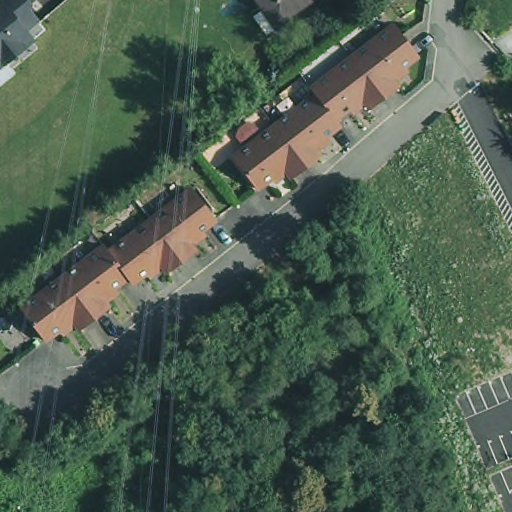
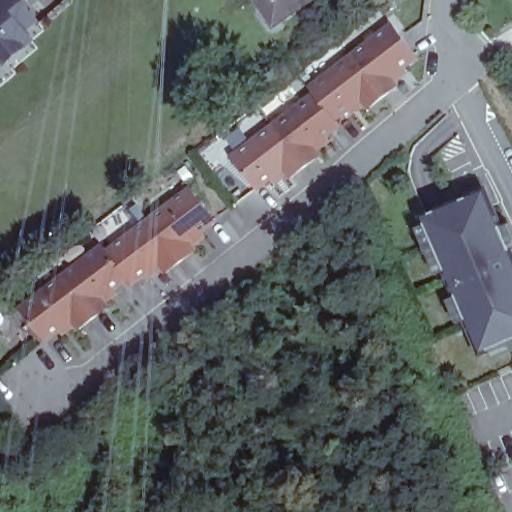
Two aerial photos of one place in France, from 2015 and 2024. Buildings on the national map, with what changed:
unchanged [(30,11),(40,23),(28,32),(38,43),(0,73),(0,0),(28,0),(35,7),(30,11)]
unchanged [(256,0),(304,0),(302,1),(278,18),(271,23),(260,6),(256,0)]
unchanged [(317,81),(398,17),(423,49),(396,70),(403,79),(375,101),(367,91),(341,112),(321,86),(317,81)]
unchanged [(341,112),(345,118),(319,139),(326,148),(297,170),(290,160),(263,181),(239,149),(321,86),(341,112)]
unchanged [(196,186),(221,218),(193,239),(201,248),(172,270),(165,260),(138,281),(133,275),(115,249),(196,186)]
new [(512,261),(512,344),(480,358),(420,221),(483,194),(512,261)]
unchanged [(133,275),(106,295),(114,305),(85,327),(78,317),(51,338),(26,306),(109,243),(115,249),(133,275)]

